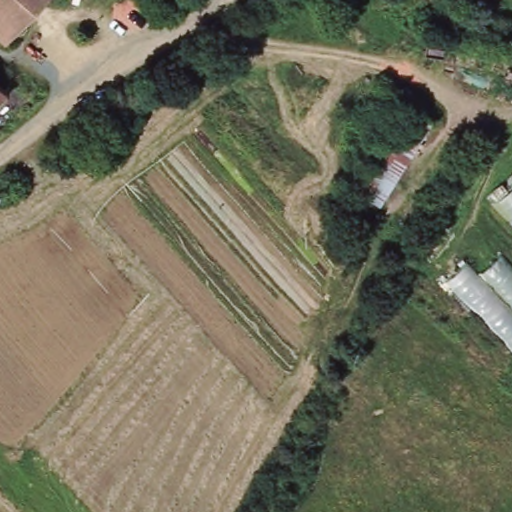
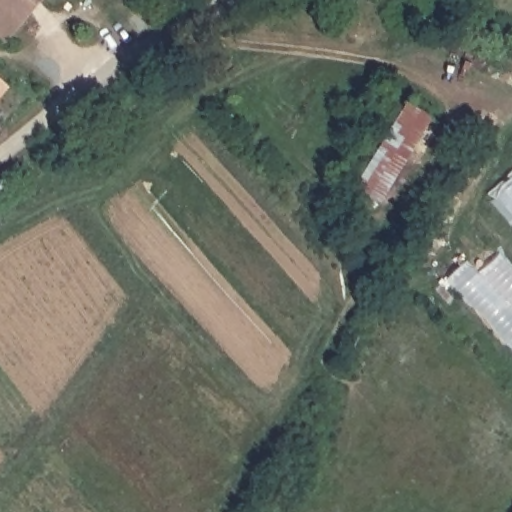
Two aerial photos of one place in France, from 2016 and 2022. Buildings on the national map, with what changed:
unchanged [(0,39),(0,0),(42,0),(4,42),(0,39)]
unchanged [(6,88),(0,95),(0,83),(6,88)]
unchanged [(377,202),(355,189),(407,105),(428,118),(377,202)]
unchanged [(512,226),(483,196),(512,169),(512,226)]
unchanged [(467,262),(480,275),(499,255),(512,268),(512,346),(448,282),(467,262)]

